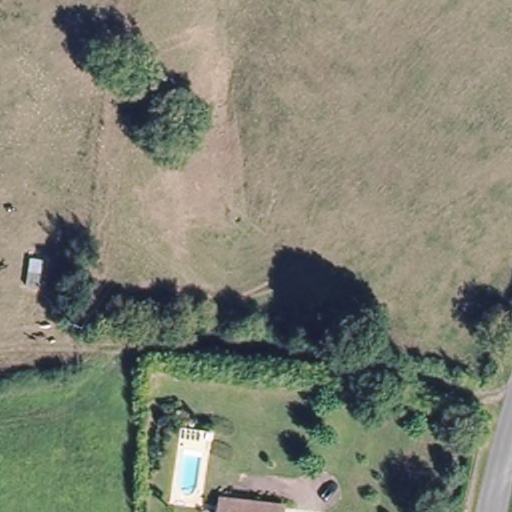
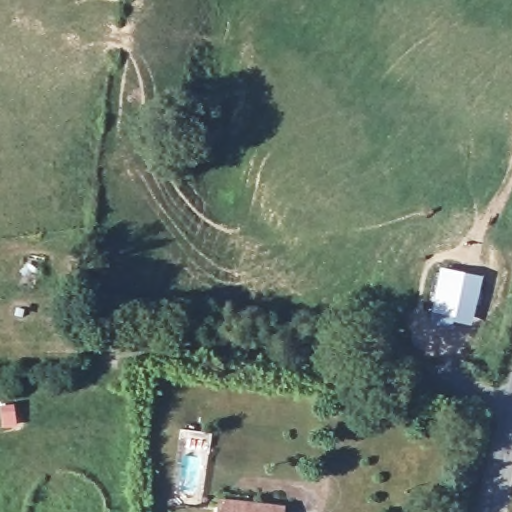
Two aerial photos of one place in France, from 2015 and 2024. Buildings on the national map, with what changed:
unchanged [(40,286),(28,283),(33,257),(45,260),(40,286)]
new [(485,275),(471,324),(453,319),(452,327),(430,321),(441,264),(485,275)]
unchanged [(209,433),(207,449),(177,446),(178,430),(209,433)]
unchanged [(215,512),(217,498),(276,504),(275,512),(215,512)]

